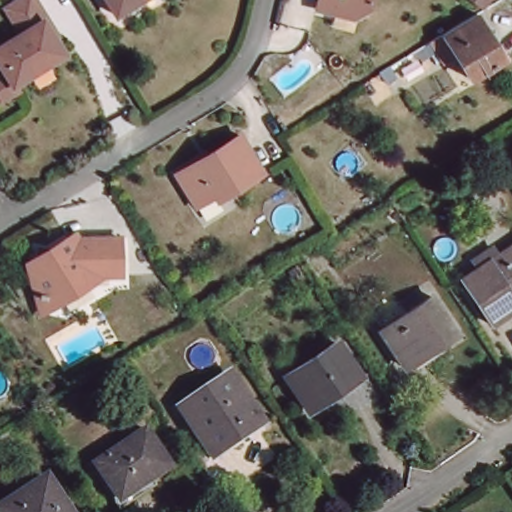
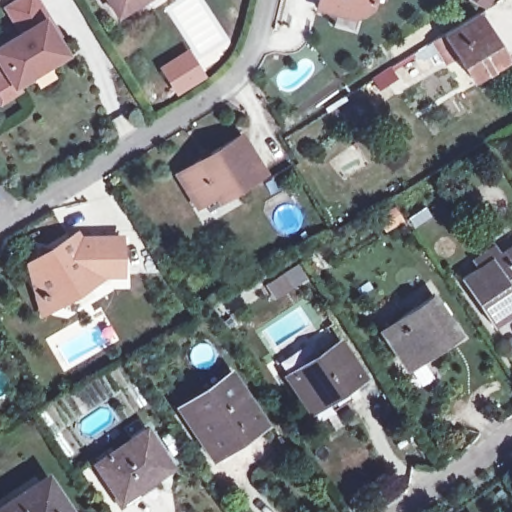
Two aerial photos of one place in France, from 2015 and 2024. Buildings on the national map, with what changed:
unchanged [(0,47),(22,33),(7,8),(20,0),(39,0),(50,19),(47,20),(68,53),(16,87),(0,59),(0,47)]
unchanged [(119,16),(109,0),(144,0),(119,16)]
unchanged [(335,8),(316,4),(317,0),(371,0),(370,4),(360,9),(355,8),(354,13),(335,8)]
unchanged [(481,7),(470,0),(486,0),(481,7)]
unchanged [(394,80),(378,90),(373,81),(385,74),(481,15),(509,59),(476,79),(462,55),(448,63),(445,58),(399,86),(394,80)]
new [(209,77),(177,97),(158,67),(188,48),(197,62),(209,77)]
unchanged [(231,186),(197,208),(177,175),(240,137),(264,174),(236,193),(231,186)]
unchanged [(35,281),(41,250),(55,253),(73,240),(87,240),(125,238),(126,273),(94,276),(95,288),(87,292),(68,306),(50,320),(35,281)]
unchanged [(488,278),(511,263),(506,255),(512,250),(512,314),(497,324),(469,280),(483,271),(488,278)]
unchanged [(378,325),(387,319),(392,326),(431,299),(455,334),(405,368),(381,334),(383,332),(378,325)]
unchanged [(325,391),(306,404),(287,377),(335,345),(356,376),(327,396),(325,391)]
unchanged [(240,429),(208,450),(181,409),(228,377),(260,425),(245,436),(240,429)]
unchanged [(169,467),(119,501),(95,466),(146,432),(169,467)]
unchanged [(0,491),(40,464),(71,510),(68,512),(2,512),(0,508),(0,491)]

